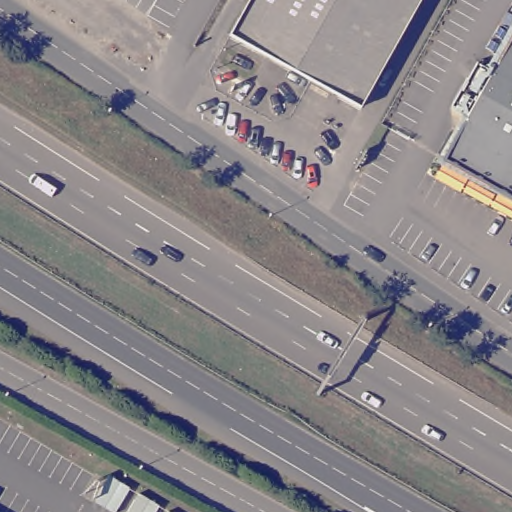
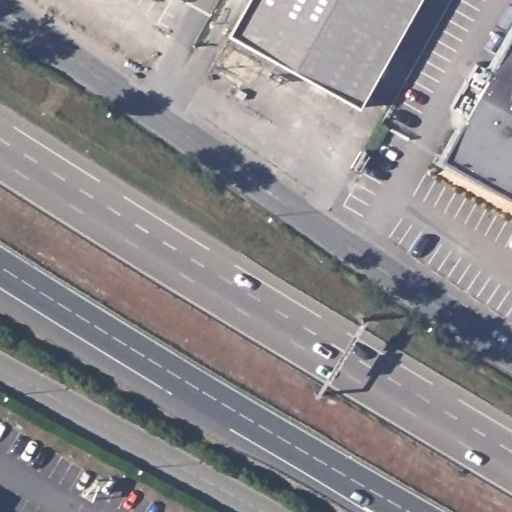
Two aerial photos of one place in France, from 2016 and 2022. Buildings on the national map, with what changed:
unchanged [(233,34),(252,0),(420,0),(360,106),(233,34)]
unchanged [(441,161),(465,116),(448,107),(472,63),(490,73),(512,34),(512,200),(441,161)]

